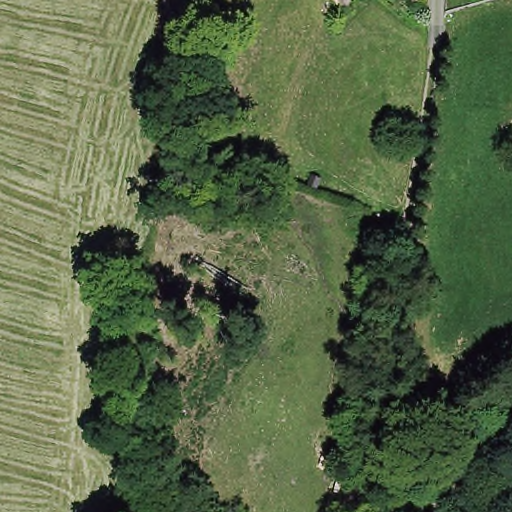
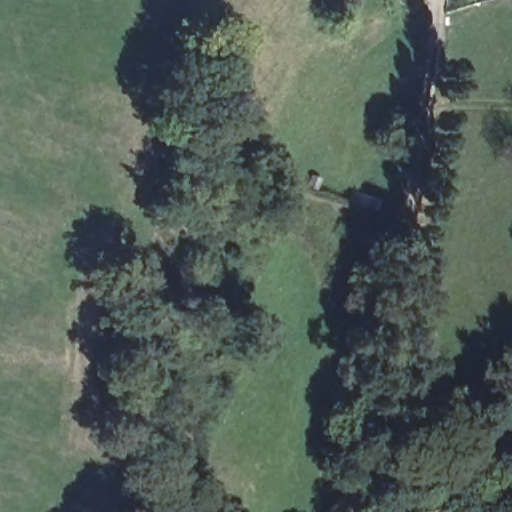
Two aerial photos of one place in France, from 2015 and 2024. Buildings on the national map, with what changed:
unchanged [(335,0),(351,0),(347,7),(335,0)]

